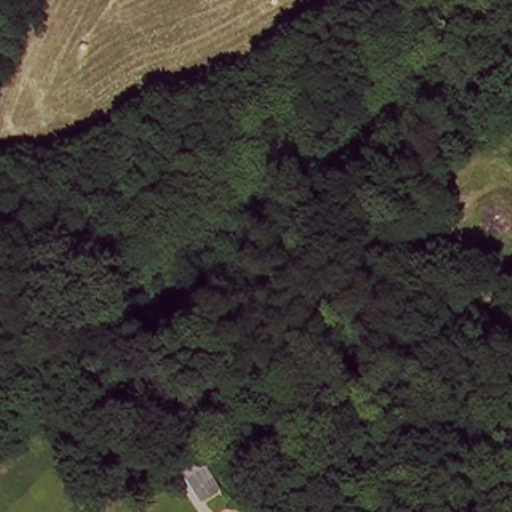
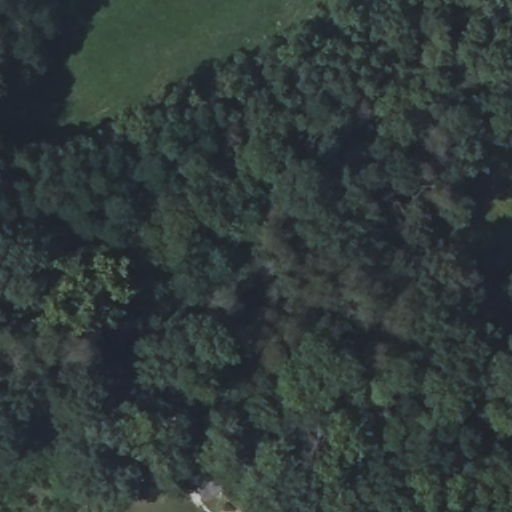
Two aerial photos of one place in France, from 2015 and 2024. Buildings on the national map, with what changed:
unchanged [(512,128),(512,143),(505,133),(512,128)]

